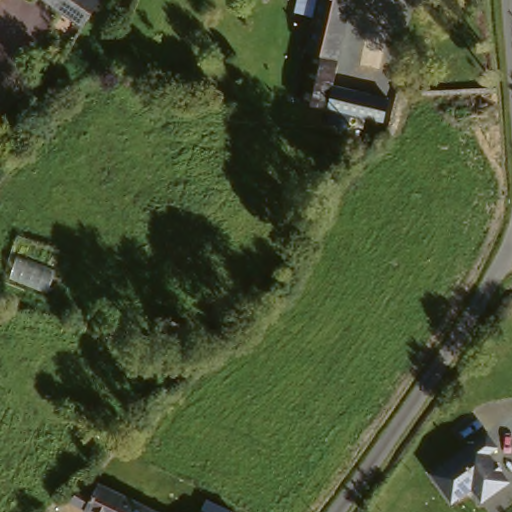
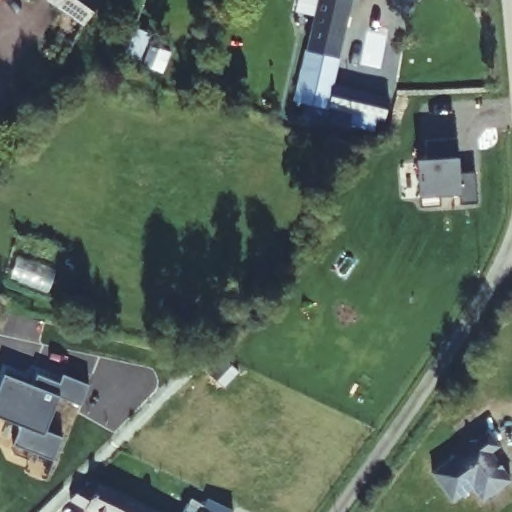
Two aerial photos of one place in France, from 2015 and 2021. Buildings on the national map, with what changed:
unchanged [(91,13),(68,0),(98,0),(91,13)]
unchanged [(315,0),(351,0),(323,81),(356,92),(348,112),(286,90),(315,0)]
new [(424,162),(422,142),(454,138),(457,159),(452,159),(454,173),(474,171),(478,203),(461,205),(460,195),(441,197),(442,205),(421,207),(415,163),(424,162)]
new [(31,393),(33,384),(56,391),(59,381),(86,390),(78,411),(58,404),(46,438),(63,444),(54,467),(13,453),(19,434),(0,428),(0,386),(1,383),(31,393)]
unchanged [(501,447),(492,454),(512,481),(512,482),(484,502),(474,489),(454,503),(434,475),(490,434),(501,447)]
unchanged [(84,478),(165,512),(84,512),(66,501),(84,478)]
unchanged [(229,503),(226,512),(213,512),(199,506),(204,493),(229,503)]

